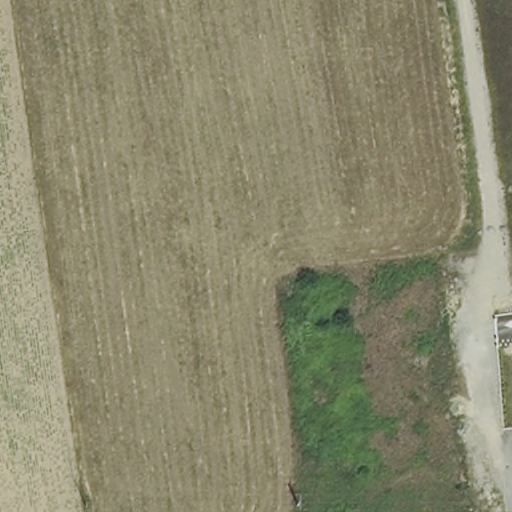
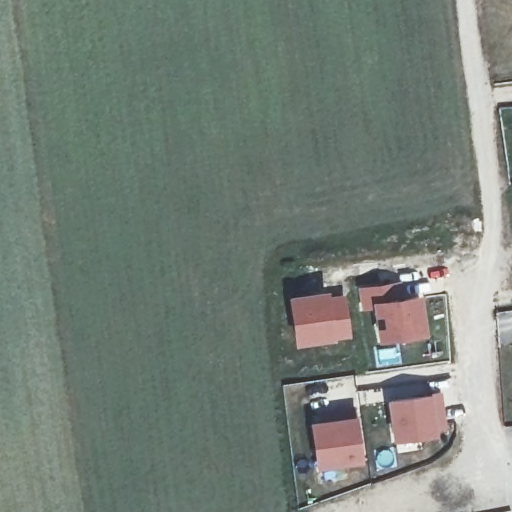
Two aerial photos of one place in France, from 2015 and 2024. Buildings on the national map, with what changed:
new [(361,309),(358,287),(399,280),(401,298),(420,295),(426,333),(378,341),(372,308),(361,309)]
new [(294,344),(287,295),(327,289),(328,295),(343,294),(350,336),(333,339),(294,344)]
new [(392,439),(387,399),(430,393),(430,392),(439,392),(444,428),(436,430),(436,434),(392,439)]
new [(315,468),(309,421),(357,415),(361,462),(315,468)]

